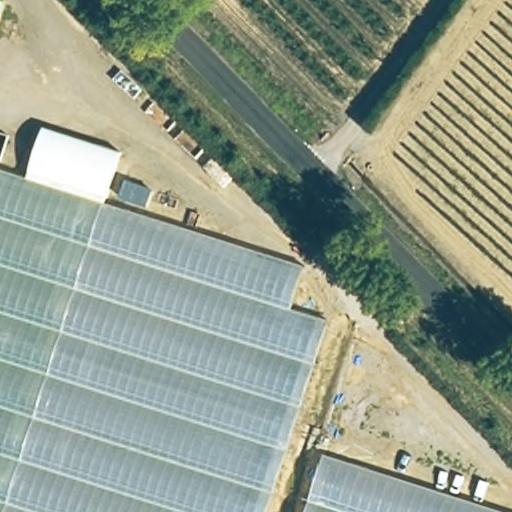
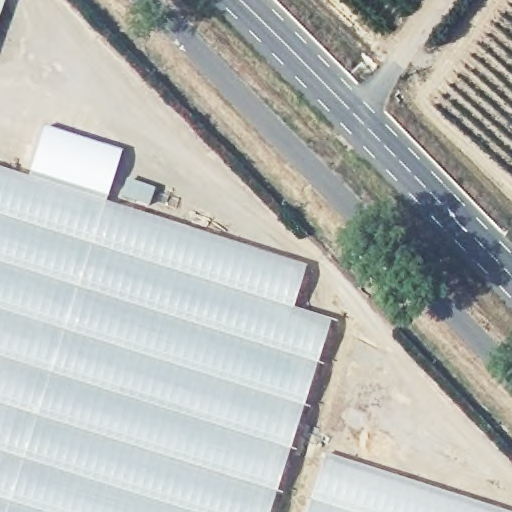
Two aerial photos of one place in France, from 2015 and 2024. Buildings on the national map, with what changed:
unchanged [(5,1),(0,15),(0,0),(2,0),(5,1)]
unchanged [(37,145),(47,148),(55,127),(119,151),(105,205),(29,181),(37,145)]
unchanged [(29,181),(105,205),(304,270),(292,310),(333,321),(272,512),(0,512),(0,172),(29,181)]
unchanged [(512,512),(309,512),(329,450),(512,508),(512,512)]

